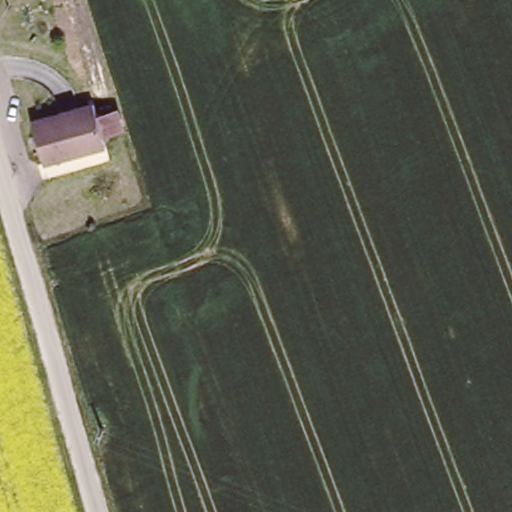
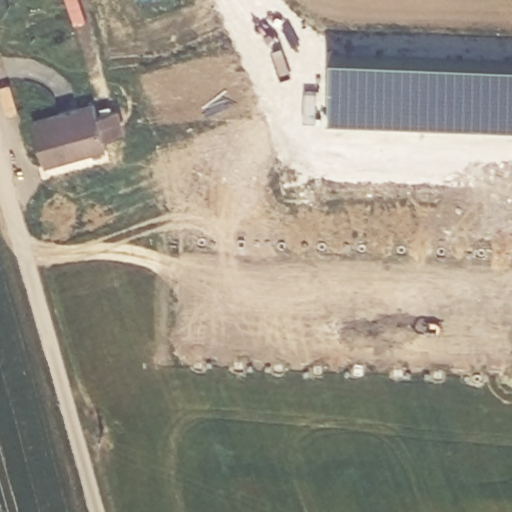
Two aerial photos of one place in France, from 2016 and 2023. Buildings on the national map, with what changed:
new [(512,63),(512,132),(330,125),(333,57),(512,63)]
unchanged [(95,99),(110,141),(52,162),(37,120),(95,99)]

